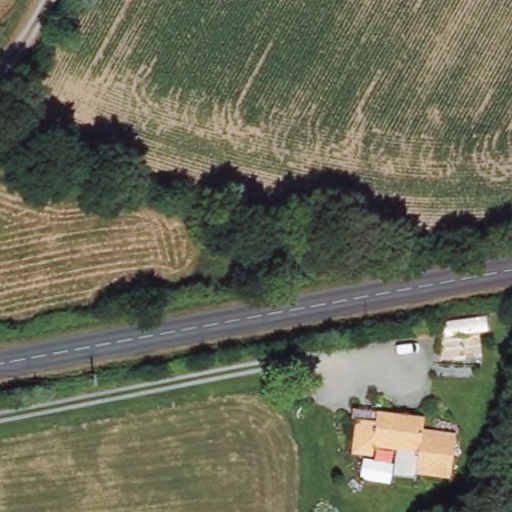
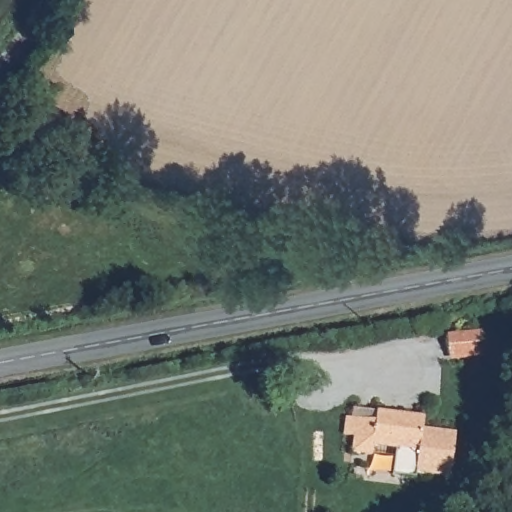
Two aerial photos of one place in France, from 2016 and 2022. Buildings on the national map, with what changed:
unchanged [(412,474),(413,453),(373,450),(371,458),(350,456),(353,419),(374,420),(374,411),(422,418),(423,432),(454,435),(448,479),(412,474)]

